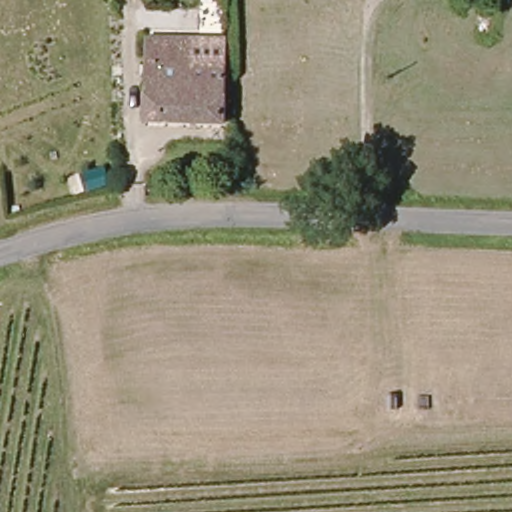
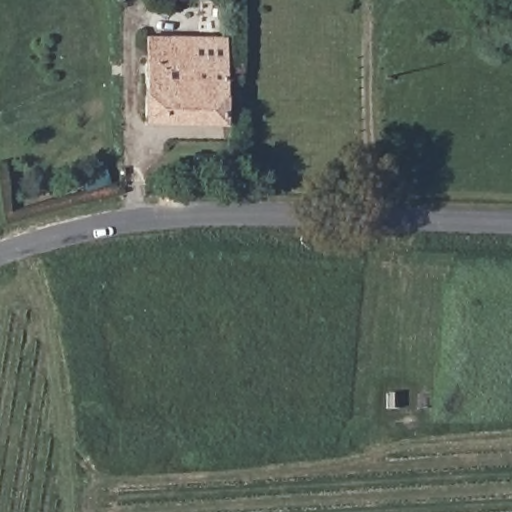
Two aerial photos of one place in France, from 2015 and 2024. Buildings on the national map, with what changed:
unchanged [(193,40),(194,64),(228,65),(228,124),(148,119),(148,39),(193,40)]
unchanged [(383,389),(397,389),(397,406),(382,406),(383,389)]
unchanged [(416,389),(429,389),(429,407),(416,407),(416,389)]

